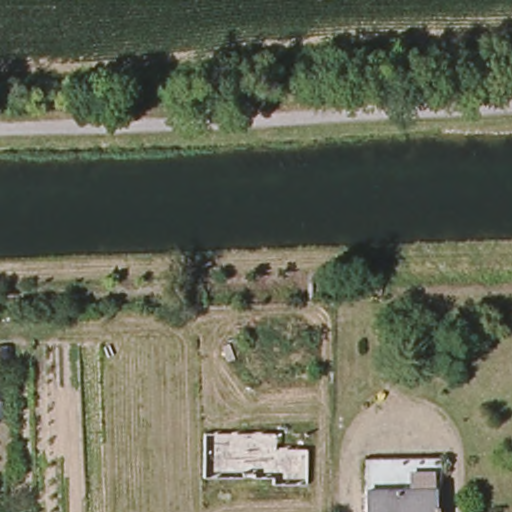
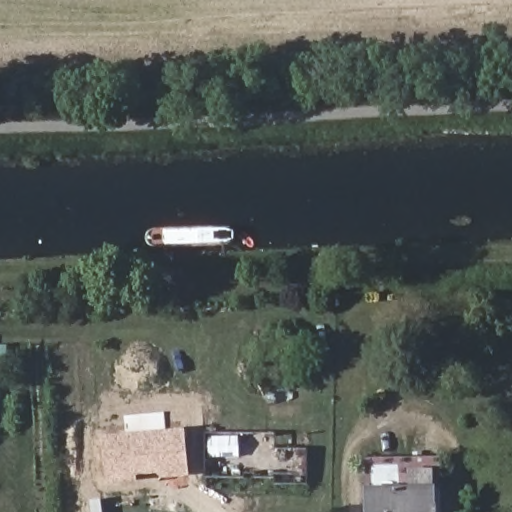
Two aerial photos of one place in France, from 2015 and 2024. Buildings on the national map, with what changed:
new [(160,479),(156,474),(136,475),(136,481),(105,484),(100,436),(184,428),(190,476),(160,479)]
unchanged [(442,512),(371,512),(371,461),(440,458),(442,512)]

